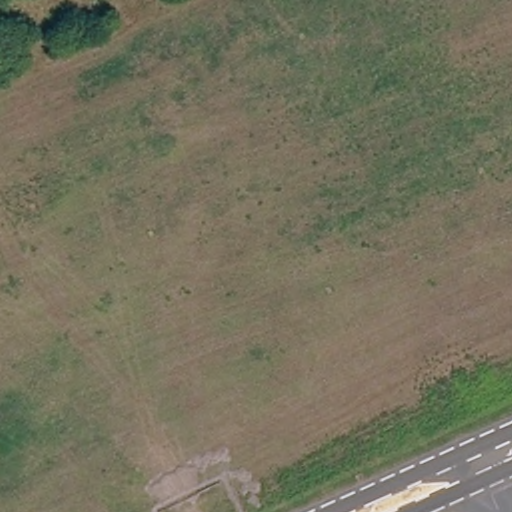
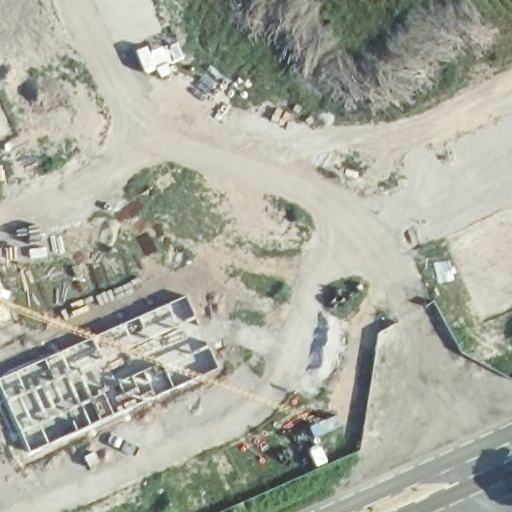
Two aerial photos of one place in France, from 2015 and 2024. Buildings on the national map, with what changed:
new [(219,367),(30,453),(0,385),(0,378),(186,295),(219,367)]

